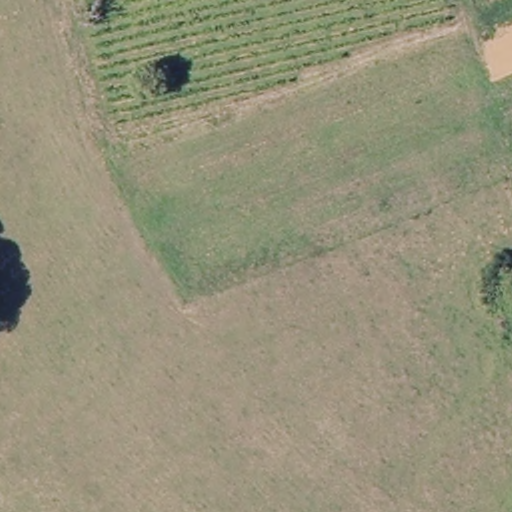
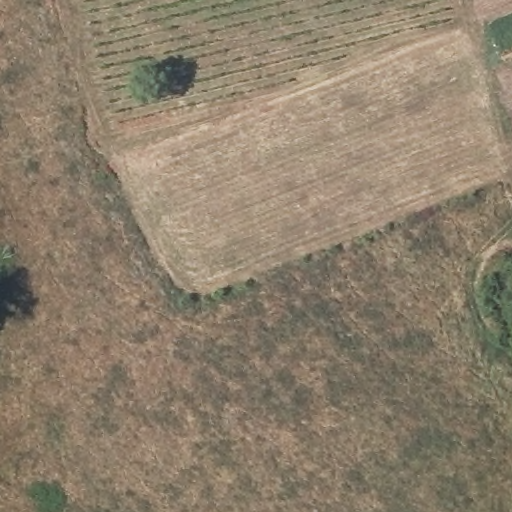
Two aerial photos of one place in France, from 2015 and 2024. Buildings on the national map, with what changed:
unchanged [(487,307),(511,295),(512,297),(512,331),(505,335),(487,307)]

